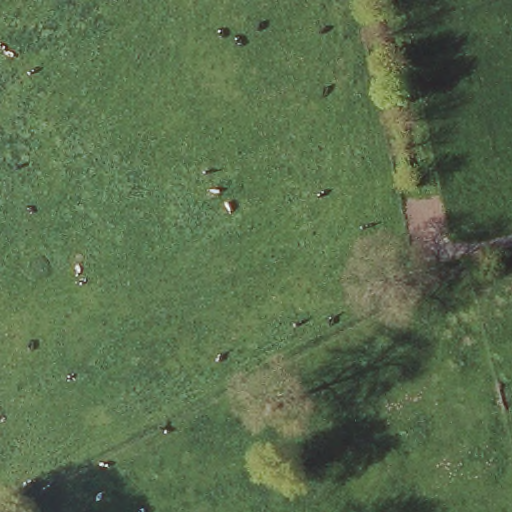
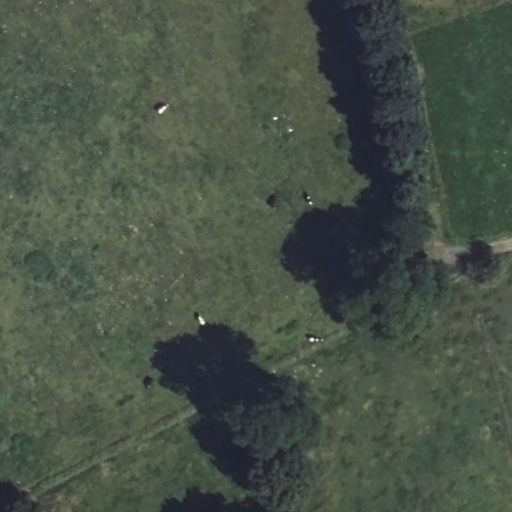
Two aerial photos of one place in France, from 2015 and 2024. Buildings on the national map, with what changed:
[]

